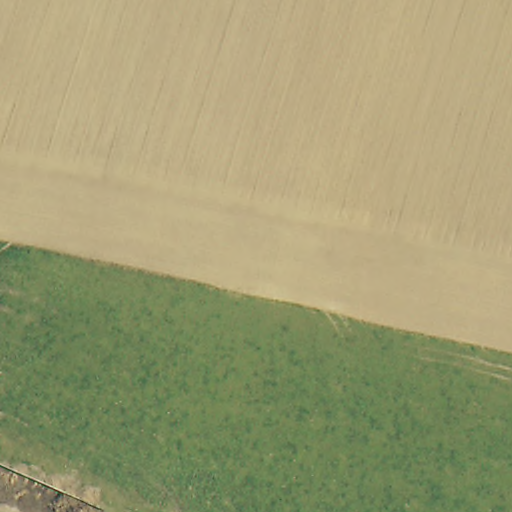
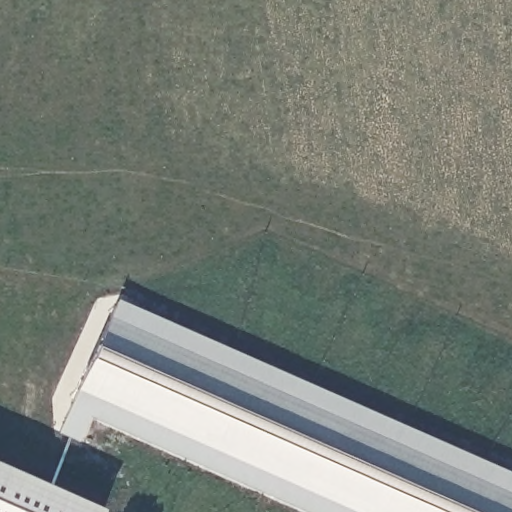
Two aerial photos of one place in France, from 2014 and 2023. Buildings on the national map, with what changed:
new [(80,441),(59,431),(117,299),(512,474),(512,512),(306,512),(92,417),(80,441)]
new [(104,512),(0,512),(0,464),(105,510),(104,512)]

